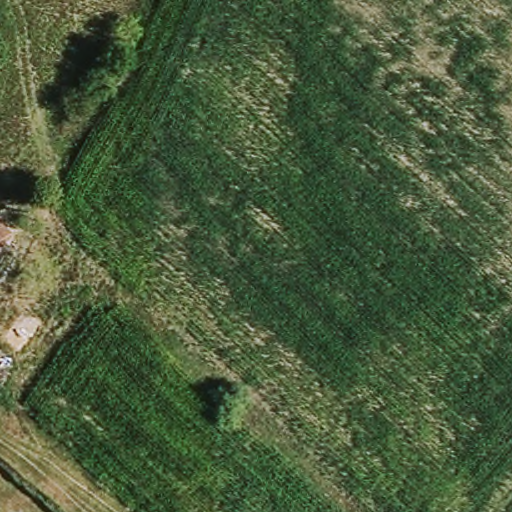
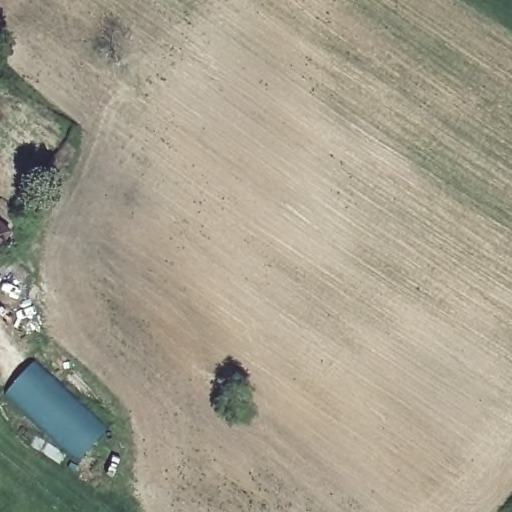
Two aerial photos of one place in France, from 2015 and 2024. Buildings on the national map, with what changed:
unchanged [(0,231),(7,237),(0,245),(0,231)]
new [(108,429),(77,463),(5,393),(37,360),(108,429)]

